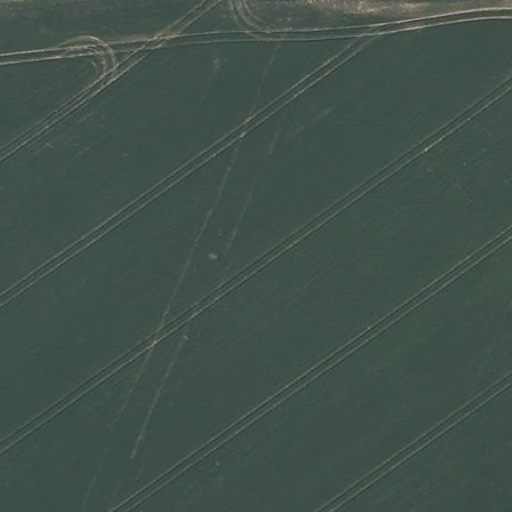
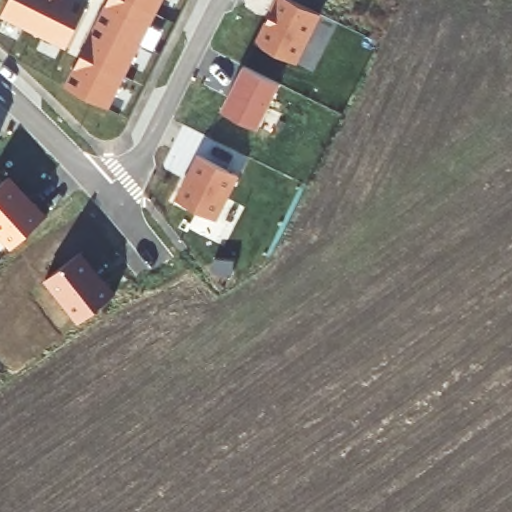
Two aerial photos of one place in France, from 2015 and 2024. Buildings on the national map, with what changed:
new [(88,4),(66,47),(2,14),(9,0),(80,0),(88,4)]
new [(109,107),(65,85),(107,0),(162,0),(109,107)]
new [(321,15),(298,61),(255,40),(274,0),(292,0),(321,15)]
new [(280,82),(258,126),(221,108),(244,63),(280,82)]
new [(239,175),(218,220),(176,198),(197,155),(239,175)]
new [(48,214),(13,249),(0,235),(0,184),(10,174),(48,214)]
new [(115,295),(77,325),(43,280),(80,250),(115,295)]

